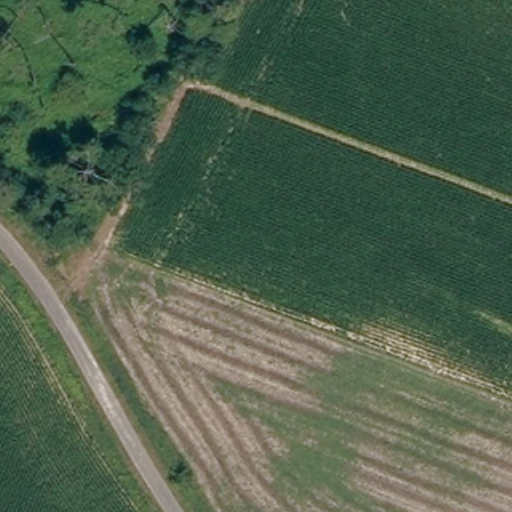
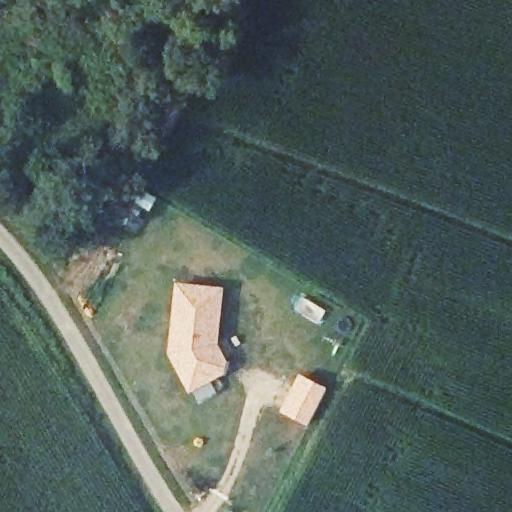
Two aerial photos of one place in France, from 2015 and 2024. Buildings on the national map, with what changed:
new [(167,354),(175,282),(224,287),(217,345),(227,362),(225,375),(189,392),(167,354)]

